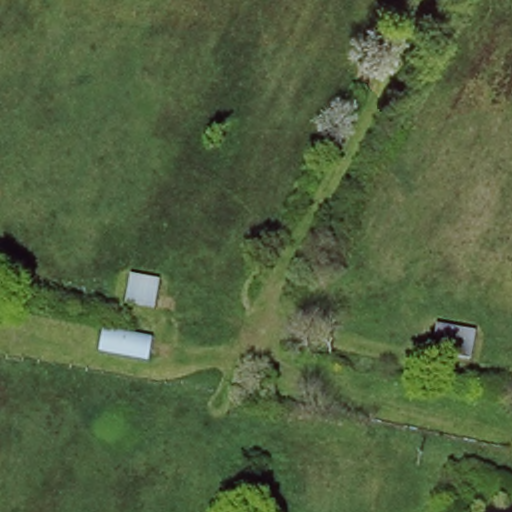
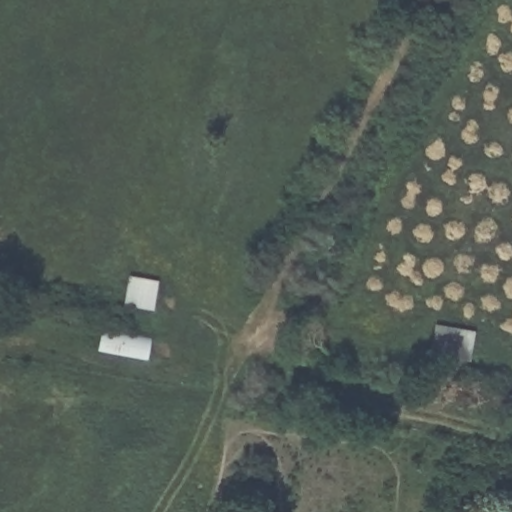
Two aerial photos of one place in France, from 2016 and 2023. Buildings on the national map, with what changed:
unchanged [(158,280),(156,306),(128,303),(131,277),(158,280)]
unchanged [(150,335),(146,358),(98,350),(103,326),(150,335)]
unchanged [(471,331),(468,356),(430,351),(432,326),(471,331)]

